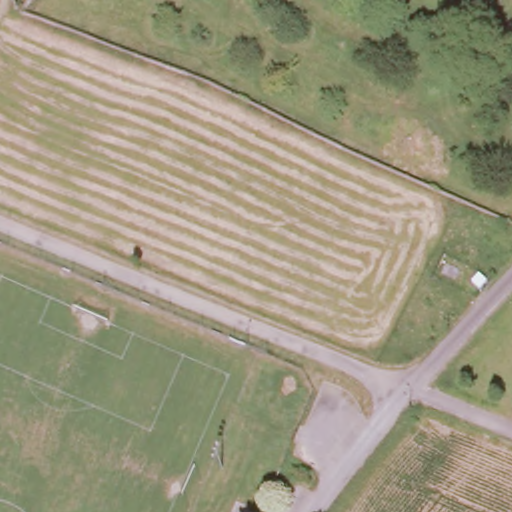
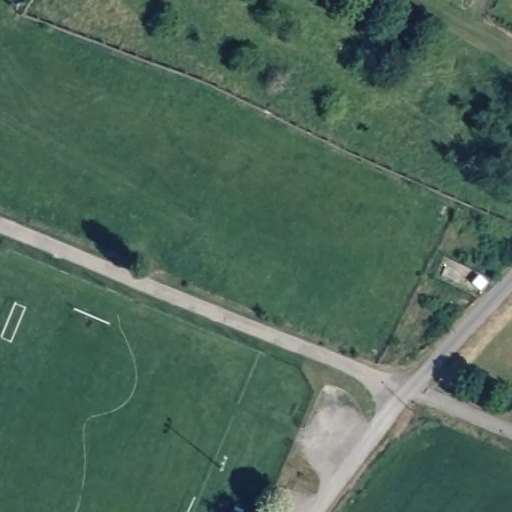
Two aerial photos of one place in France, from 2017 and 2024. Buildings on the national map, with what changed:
unchanged [(255,502),(251,512),(234,512),(241,496),(255,502)]

